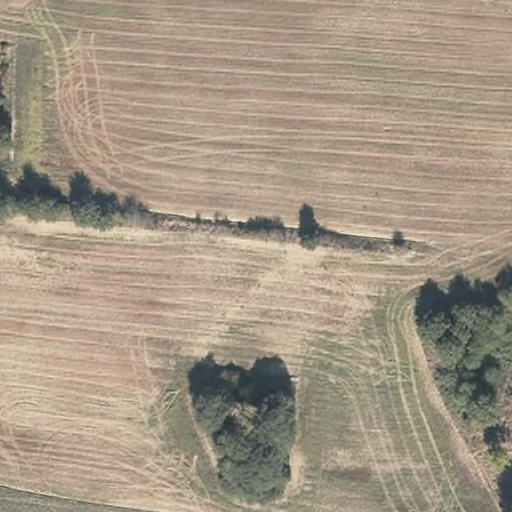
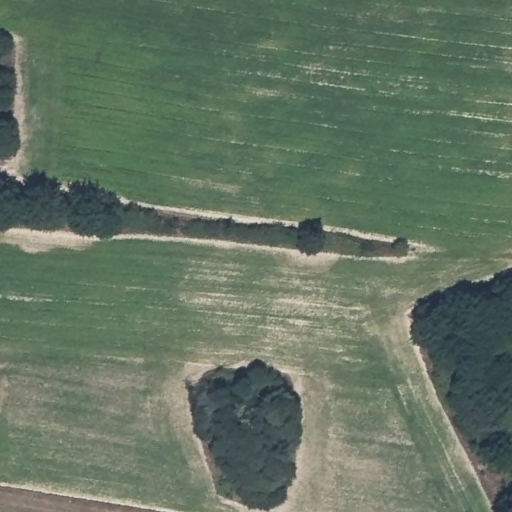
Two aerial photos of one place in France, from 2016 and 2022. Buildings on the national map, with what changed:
[]

